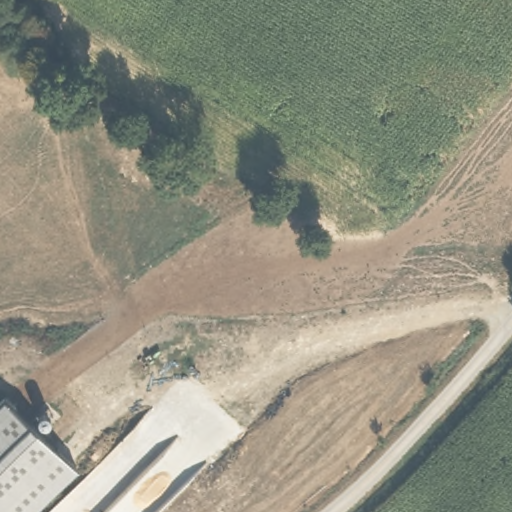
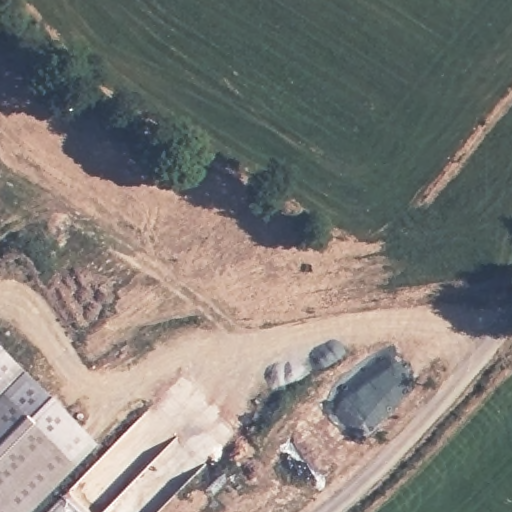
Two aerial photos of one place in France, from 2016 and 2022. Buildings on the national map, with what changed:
new [(95,443),(71,469),(3,400),(0,403),(0,349),(95,443)]
unchanged [(71,469),(29,512),(0,512),(0,403),(3,400),(71,469)]

